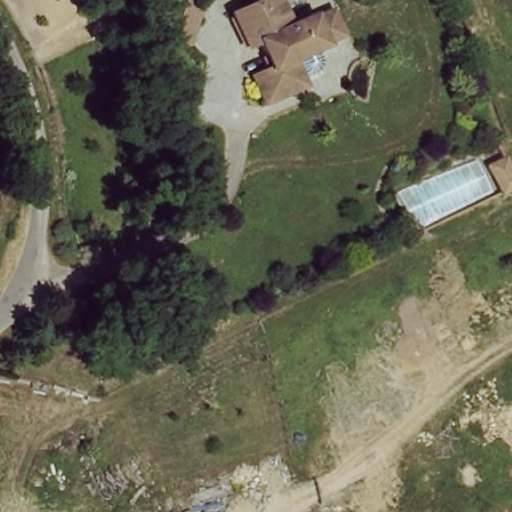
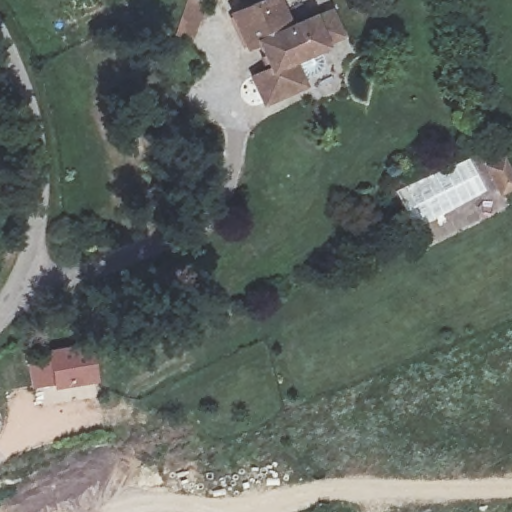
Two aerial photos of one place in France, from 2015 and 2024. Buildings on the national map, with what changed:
unchanged [(274,0),(283,22),(307,12),(308,14),(325,7),(335,31),(318,38),(320,40),(288,53),(298,79),(257,97),(246,69),(265,62),(255,36),(242,40),(230,12),(260,0),(274,0)]
new [(46,348),(90,341),(96,377),(32,388),(28,363),(48,359),(46,348)]

